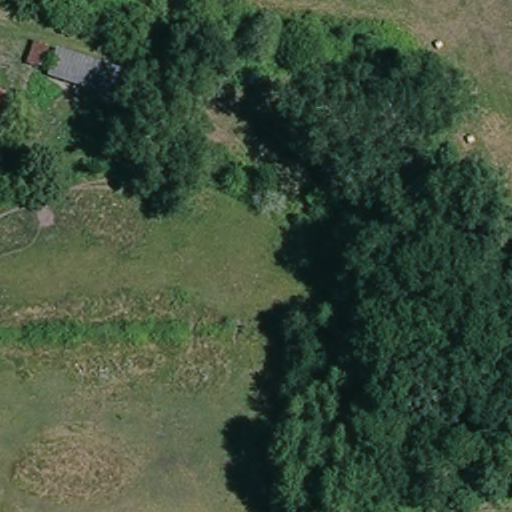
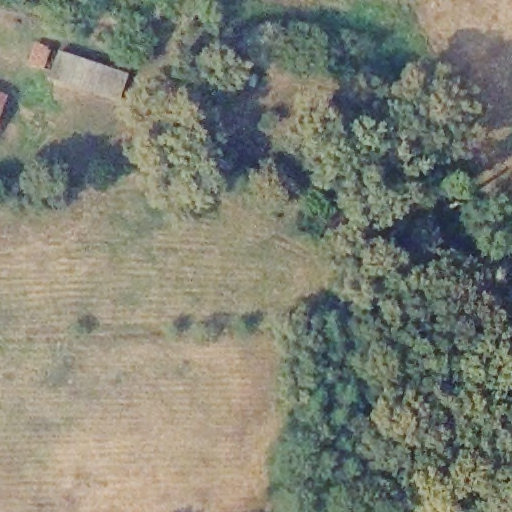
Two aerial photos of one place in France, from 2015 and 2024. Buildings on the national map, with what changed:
unchanged [(106,99),(44,74),(49,42),(117,71),(106,99)]

